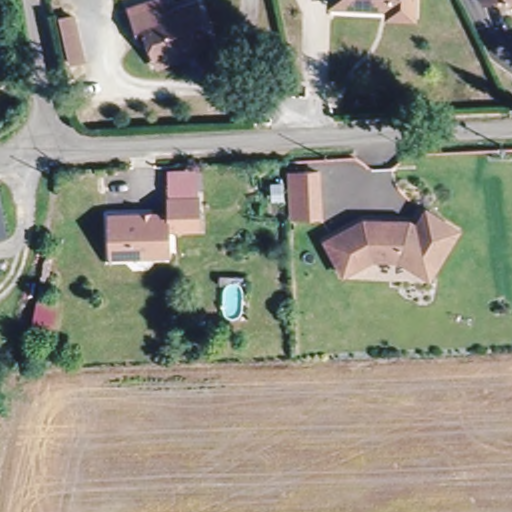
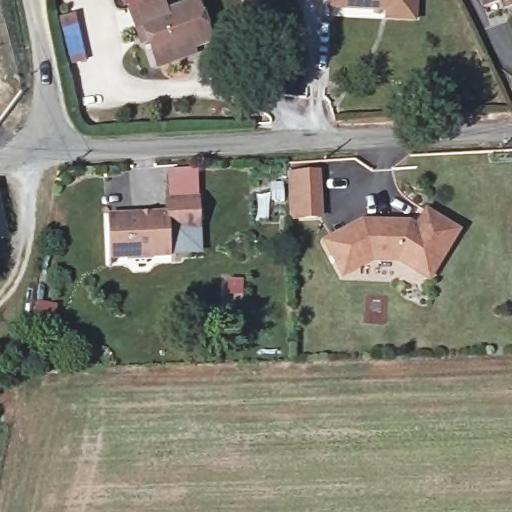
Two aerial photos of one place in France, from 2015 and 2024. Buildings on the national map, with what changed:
unchanged [(154,56),(148,37),(140,40),(134,24),(127,2),(135,0),(168,0),(169,4),(180,0),(198,0),(211,37),(194,42),(197,51),(157,64),(154,56)]
unchanged [(384,21),(383,8),(325,3),(325,0),(411,0),(408,23),(384,21)]
unchanged [(67,17),(82,12),(91,57),(75,61),(67,17)]
unchanged [(169,229),(169,255),(104,258),(103,217),(163,214),(163,199),(162,174),(192,172),(193,197),(195,227),(169,229)]
unchanged [(321,172),(323,217),(293,218),(291,174),(321,172)]
unchanged [(0,237),(0,211),(5,236),(0,237)]
unchanged [(420,273),(401,262),(375,262),(352,276),(346,278),(328,246),(348,235),(366,224),(411,226),(420,230),(429,214),(461,234),(451,250),(432,281),(420,273)]

